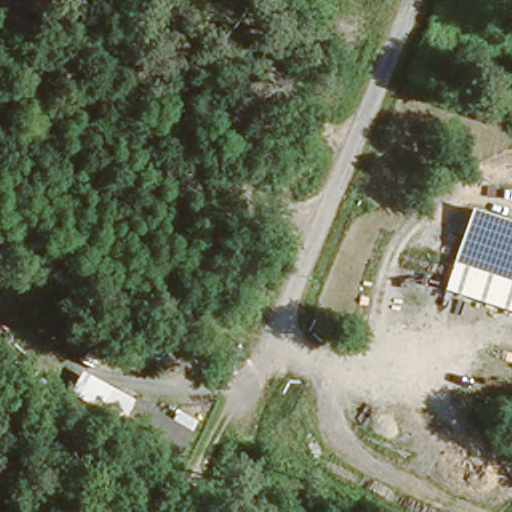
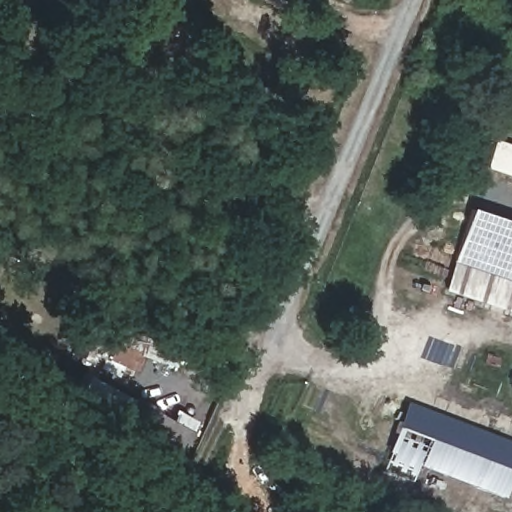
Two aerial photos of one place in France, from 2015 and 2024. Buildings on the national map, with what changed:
new [(485,166),(495,139),(512,144),(512,175),(485,166)]
unchanged [(447,290),(449,288),(475,208),(512,220),(512,312),(447,290)]
unchanged [(122,327),(169,342),(163,357),(115,342),(122,327)]
new [(512,444),(512,475),(502,501),(416,467),(408,484),(380,473),(396,429),(406,404),(512,444)]

